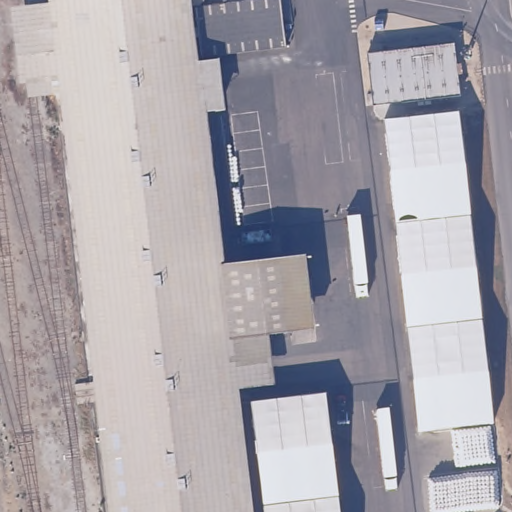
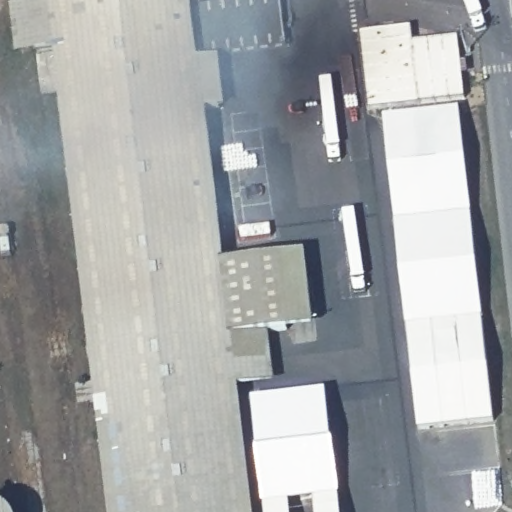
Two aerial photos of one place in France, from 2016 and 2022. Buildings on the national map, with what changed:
unchanged [(255,50),(236,52),(197,55),(201,85),(223,259),(281,252),(290,327),(270,329),(231,334),(237,386),(252,512),(110,512),(60,92),(39,94),(38,81),(34,48),(54,44),(48,0),(249,0),(255,50)]
unchanged [(282,47),(255,50),(249,0),(276,0),(282,47)]
unchanged [(456,41),(462,94),(373,105),(367,52),(456,41)]
unchanged [(240,81),(201,85),(197,55),(236,52),(240,81)]
unchanged [(384,117),(460,109),(496,422),(418,432),(384,117)]
unchanged [(315,324),(290,327),(281,252),(306,249),(315,324)]
unchanged [(275,381),(237,386),(231,334),(270,329),(275,381)]
unchanged [(343,512),(263,512),(249,400),(327,390),(343,512)]

